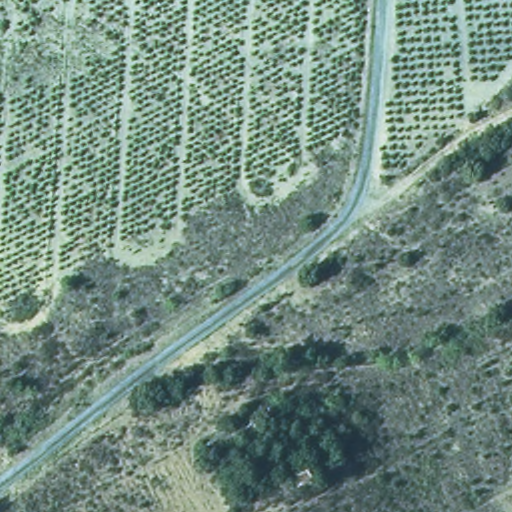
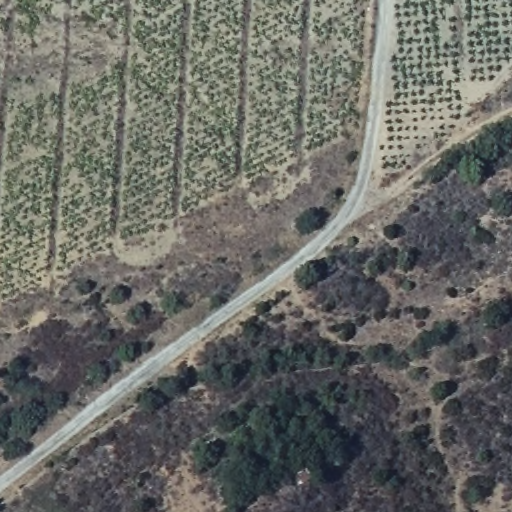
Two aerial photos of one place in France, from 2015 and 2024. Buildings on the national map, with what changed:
unchanged [(290,475),(311,464),(317,483),(296,490),(290,475)]

